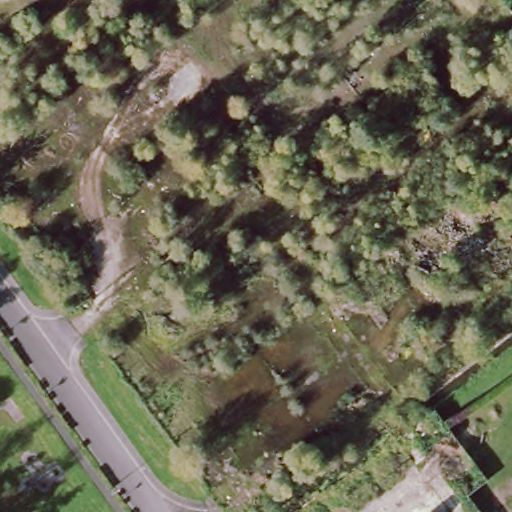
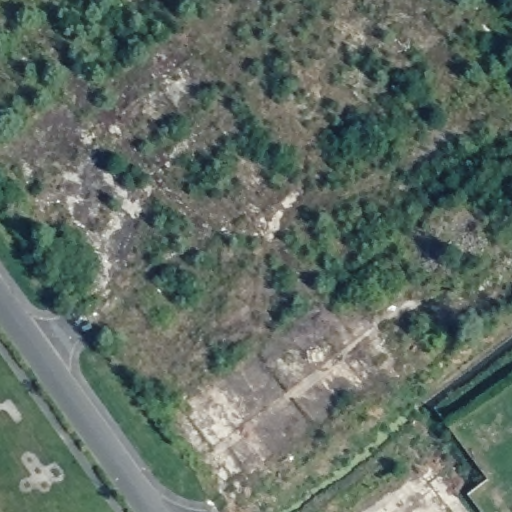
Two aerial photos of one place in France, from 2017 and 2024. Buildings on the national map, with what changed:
[]

